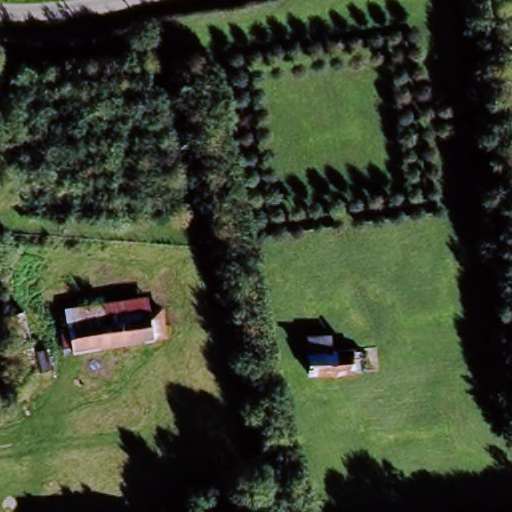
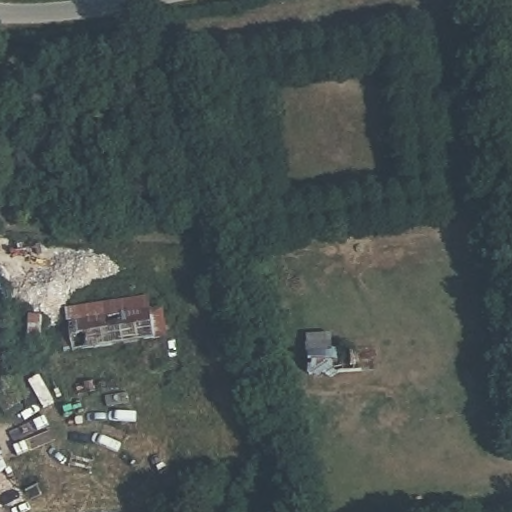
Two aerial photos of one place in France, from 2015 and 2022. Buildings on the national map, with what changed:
unchanged [(75,347),(72,322),(161,311),(165,336),(75,347)]
unchanged [(421,353),(423,375),(303,379),(302,358),(421,353)]

